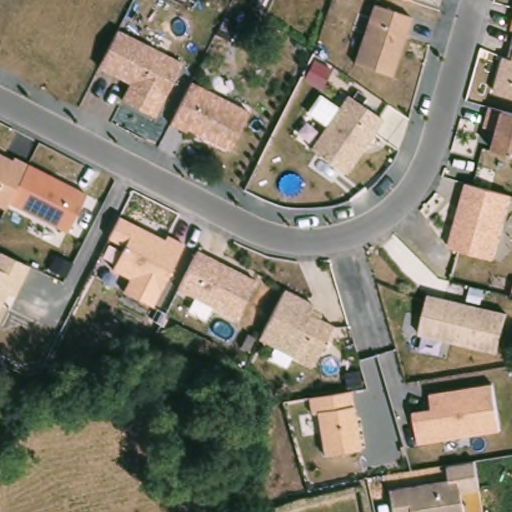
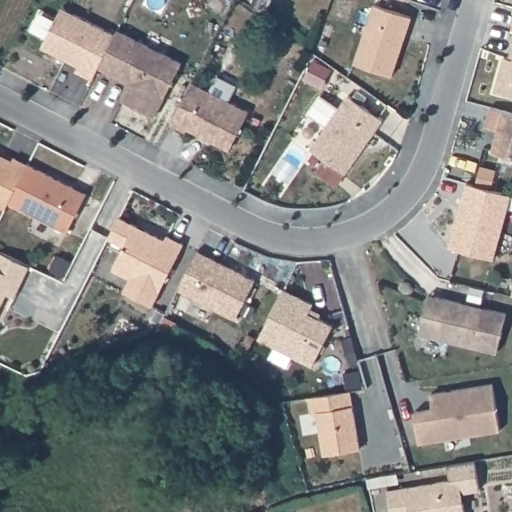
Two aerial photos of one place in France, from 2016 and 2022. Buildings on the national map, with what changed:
unchanged [(412,2),(407,0),(412,0),(412,2)]
unchanged [(414,18),(394,76),(357,64),(376,5),(414,18)]
new [(41,47),(63,7),(116,33),(100,67),(94,79),(76,71),(78,65),(41,47)]
unchanged [(123,101),(131,83),(101,68),(118,30),(183,62),(156,119),(123,101)]
unchanged [(500,95),(512,45),(512,97),(500,95)]
unchanged [(250,114),(229,152),(193,132),(191,135),(175,125),(194,86),(250,114)]
unchanged [(386,122),(347,175),(312,148),(348,98),(386,122)]
unchanged [(507,112),(512,113),(512,154),(495,150),(499,131),(487,127),(491,110),(507,112)]
unchanged [(69,234),(10,205),(8,210),(0,206),(0,154),(13,161),(16,158),(89,195),(69,234)]
unchanged [(512,195),(512,204),(510,213),(512,214),(512,231),(504,230),(495,261),(450,247),(468,183),(512,195)]
unchanged [(122,293),(129,280),(111,271),(123,249),(107,239),(119,215),(164,238),(166,233),(186,243),(152,307),(122,293)]
unchanged [(15,297),(6,294),(0,307),(0,253),(30,265),(15,297)]
unchanged [(257,281),(238,320),(179,291),(199,253),(257,281)]
unchanged [(334,325),(312,370),(259,342),(285,291),(314,304),(310,314),(334,325)]
unchanged [(509,312),(498,354),(420,336),(429,294),(509,312)]
unchanged [(414,411),(433,407),(430,394),(491,384),(499,430),(420,444),(414,411)]
unchanged [(362,450),(324,455),(319,414),(314,416),(310,398),(354,393),(362,450)]
unchanged [(451,481),(448,464),(478,460),(481,488),(464,491),(462,479),(451,481)]
unchanged [(392,512),(389,492),(462,479),(468,512),(392,512)]

